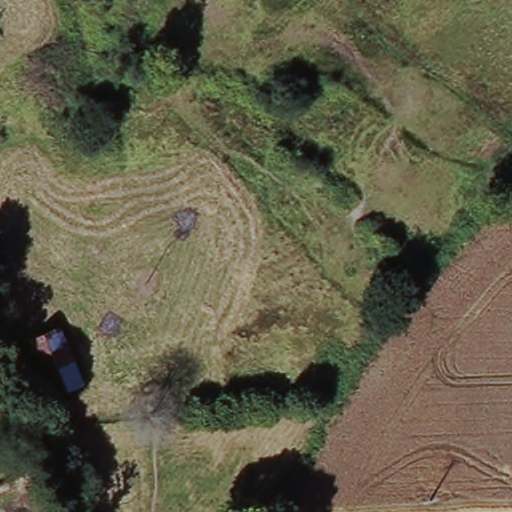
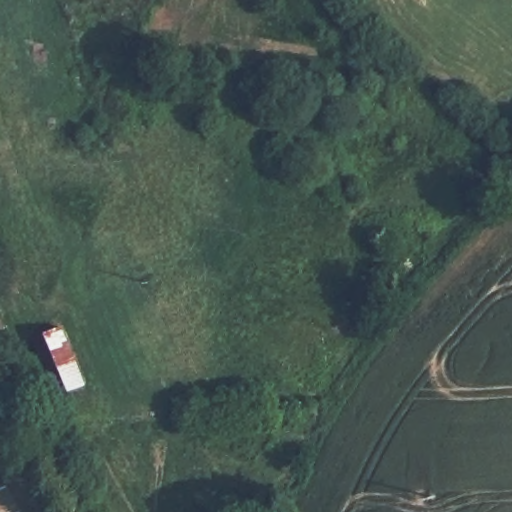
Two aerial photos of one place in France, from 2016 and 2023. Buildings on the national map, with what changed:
unchanged [(60,321),(84,379),(55,390),(30,334),(60,321)]

